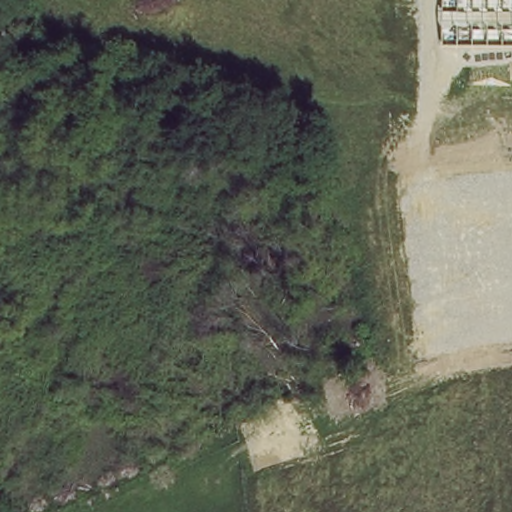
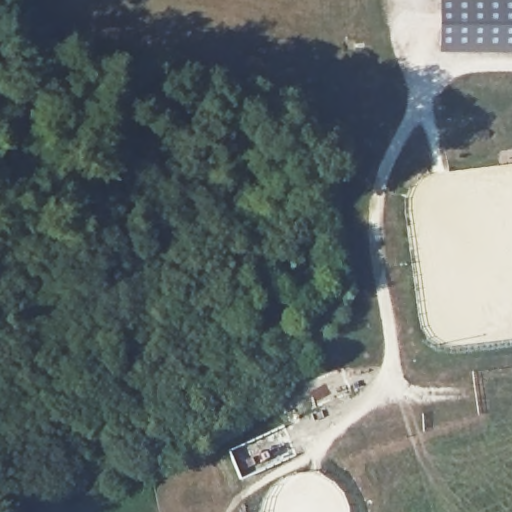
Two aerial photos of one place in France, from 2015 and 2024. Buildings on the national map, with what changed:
new [(441,49),(441,0),(512,0),(512,49),(441,49)]

